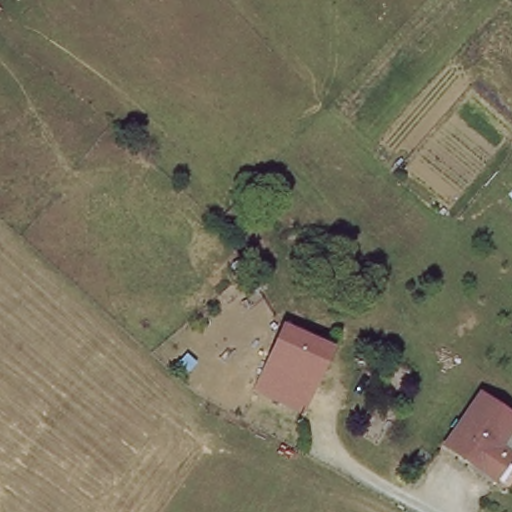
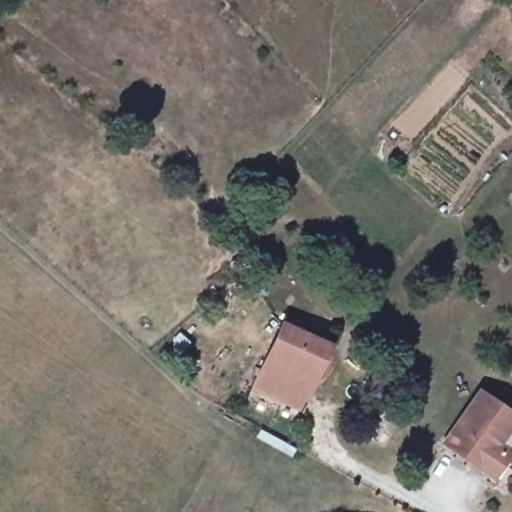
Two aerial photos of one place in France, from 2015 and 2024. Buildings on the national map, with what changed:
unchanged [(288,379),(311,387),(314,377),(339,386),(325,424),(251,397),(282,311),(311,322),(303,342),(288,379)]
unchanged [(349,359),(339,386),(314,377),(311,387),(288,379),(303,342),(349,359)]
unchanged [(445,441),(481,391),(512,413),(512,450),(510,452),(494,476),(445,441)]

